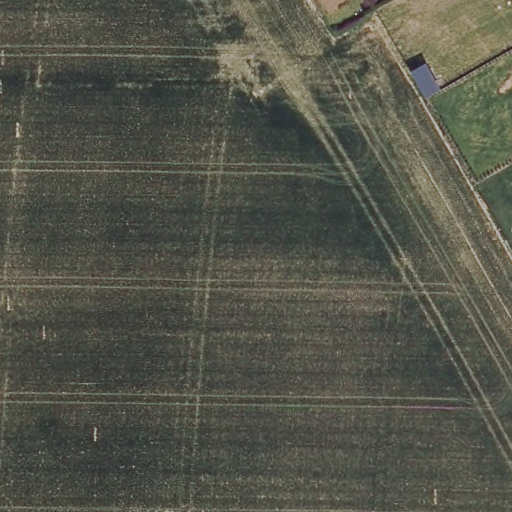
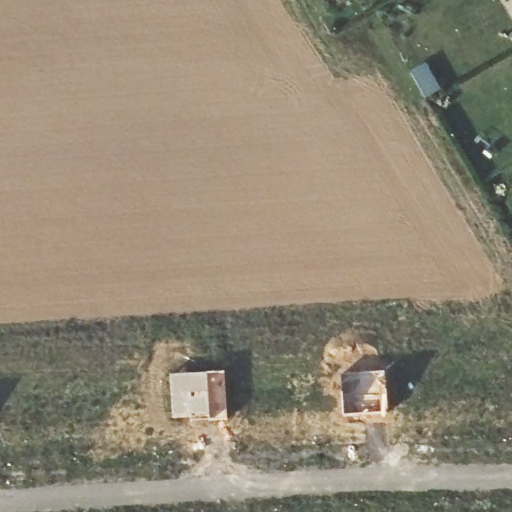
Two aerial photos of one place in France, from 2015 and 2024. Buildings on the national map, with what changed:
new [(419,60),(436,90),(422,98),(404,67),(419,60)]
new [(385,413),(343,415),(340,374),(384,373),(385,413)]
new [(226,421),(190,422),(190,418),(173,419),(171,376),(224,374),(226,421)]

